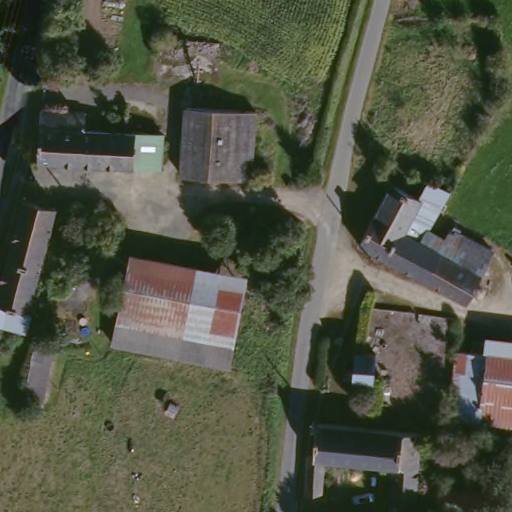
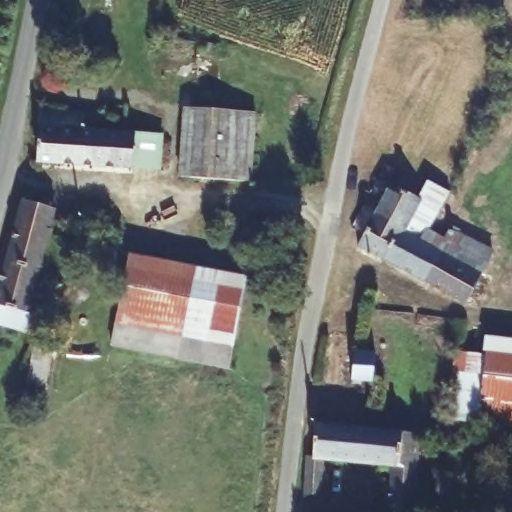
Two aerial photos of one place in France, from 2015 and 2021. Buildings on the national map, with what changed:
unchanged [(260,109),(256,177),(191,173),(193,105),(260,109)]
unchanged [(164,166),(146,166),(51,160),(54,107),(98,110),(98,129),(150,132),(167,135),(164,166)]
unchanged [(399,184),(425,197),(434,180),(461,194),(446,222),(433,244),(412,230),(411,232),(394,261),(364,245),(399,184)]
unchanged [(0,319),(0,297),(26,200),(43,205),(60,209),(33,327),(0,319)]
unchanged [(411,232),(412,230),(433,244),(447,252),(453,256),(488,277),(478,295),(473,303),(398,263),(394,261),(411,232)]
unchanged [(502,254),(488,277),(453,256),(447,252),(459,231),(502,254)]
unchanged [(228,270),(249,273),(236,363),(121,345),(131,257),(228,270)]
unchanged [(61,336),(48,403),(30,400),(44,333),(61,336)]
unchanged [(490,351),(492,333),(512,336),(512,424),(453,418),(460,349),(490,351)]
unchanged [(384,350),(381,380),(361,378),(364,348),(384,350)]
unchanged [(335,458),(331,490),(314,497),(314,493),(317,453),(322,453),(325,423),(370,427),(366,461),(335,458)]
unchanged [(399,466),(366,461),(370,427),(427,433),(424,512),(397,512),(399,466)]

